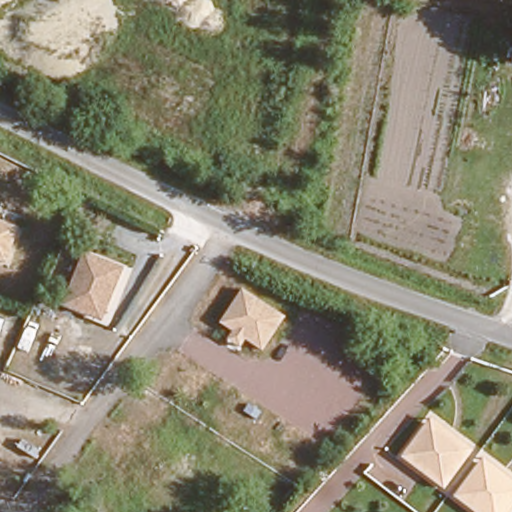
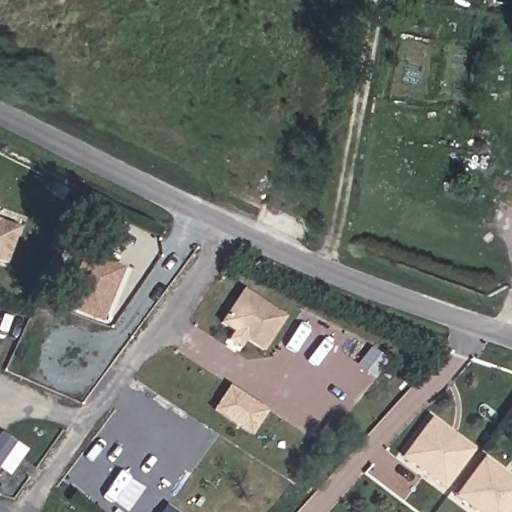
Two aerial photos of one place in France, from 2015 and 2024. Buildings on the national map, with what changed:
unchanged [(7,265),(0,263),(0,221),(20,230),(7,265)]
unchanged [(103,322),(65,309),(86,254),(124,266),(103,322)]
unchanged [(287,318),(264,353),(220,325),(244,288),(287,318)]
new [(251,437),(212,410),(229,384),(268,410),(251,437)]
unchanged [(475,450),(444,491),(401,457),(432,419),(475,450)]
unchanged [(509,512),(472,512),(456,499),(483,458),(512,480),(512,509),(509,512)]

